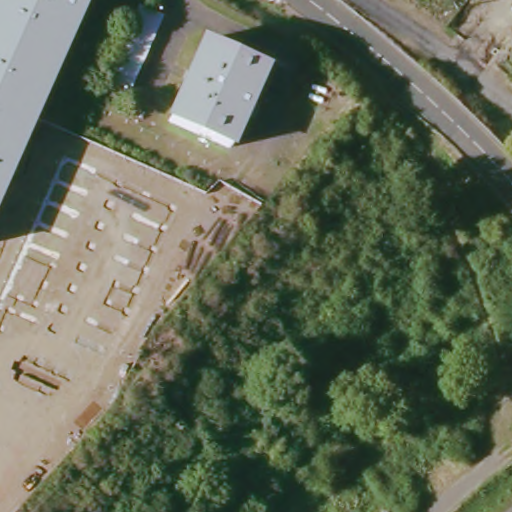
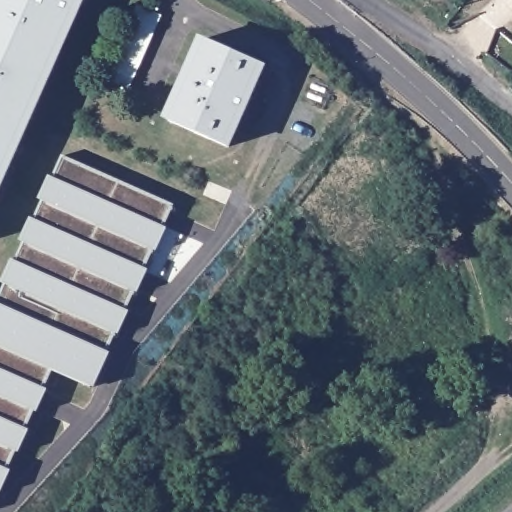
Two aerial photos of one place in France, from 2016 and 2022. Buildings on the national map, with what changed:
unchanged [(0,183),(0,0),(83,0),(0,183)]
unchanged [(138,4),(161,14),(127,87),(105,77),(138,4)]
unchanged [(204,38),(265,66),(228,148),(167,119),(204,38)]
new [(6,285),(3,284),(14,259),(16,260),(24,242),(22,241),(32,218),(35,219),(43,200),(40,199),(50,176),(53,177),(64,156),(176,205),(166,227),(169,228),(159,253),(155,252),(148,268),(151,270),(141,294),(136,293),(127,310),(130,312),(122,336),(116,334),(109,352),(113,354),(99,388),(95,387),(94,390),(55,371),(48,390),(51,392),(42,415),(38,414),(30,431),(33,433),(24,455),(19,453),(11,471),(14,473),(6,496),(1,493),(0,496),(0,299),(6,285)]

